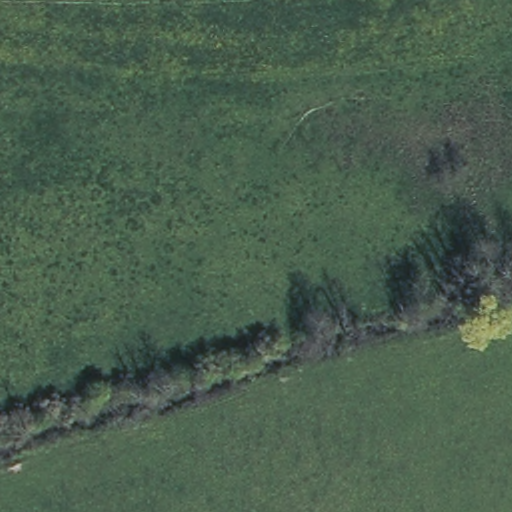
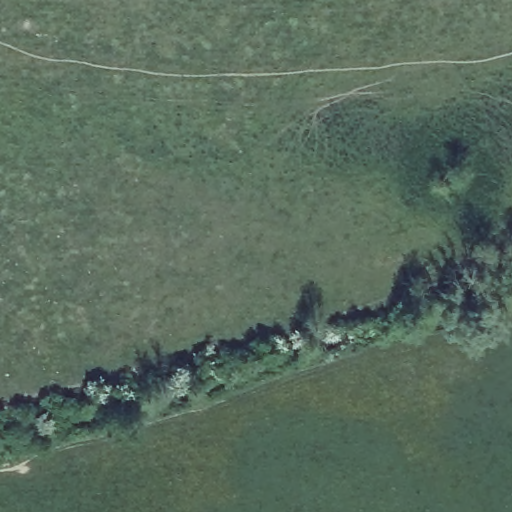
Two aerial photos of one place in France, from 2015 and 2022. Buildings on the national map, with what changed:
[]

